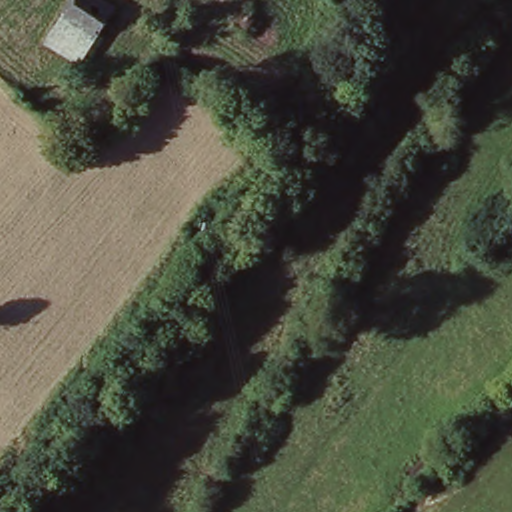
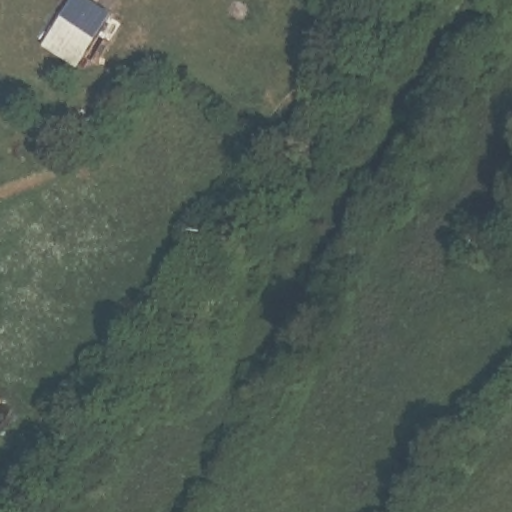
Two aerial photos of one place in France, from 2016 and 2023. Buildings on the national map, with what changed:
unchanged [(85,0),(110,17),(77,70),(42,48),(71,0),(85,0)]

